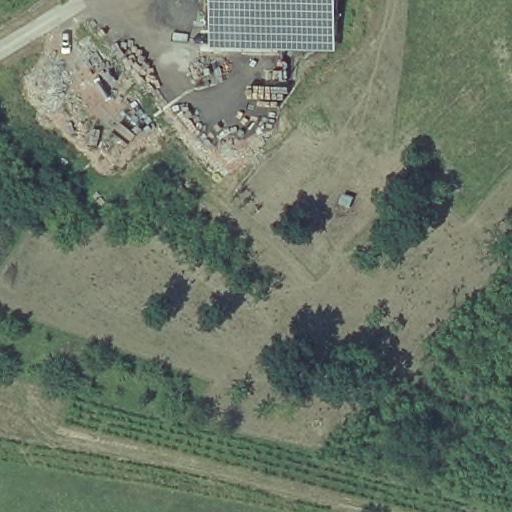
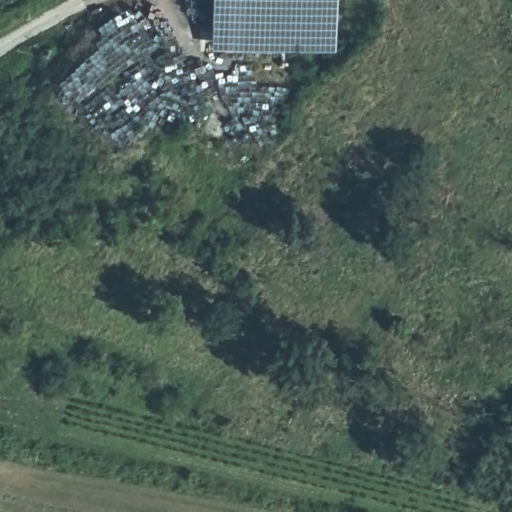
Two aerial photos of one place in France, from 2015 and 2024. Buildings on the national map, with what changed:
unchanged [(217,0),(339,0),(339,48),(216,48),(217,0)]

